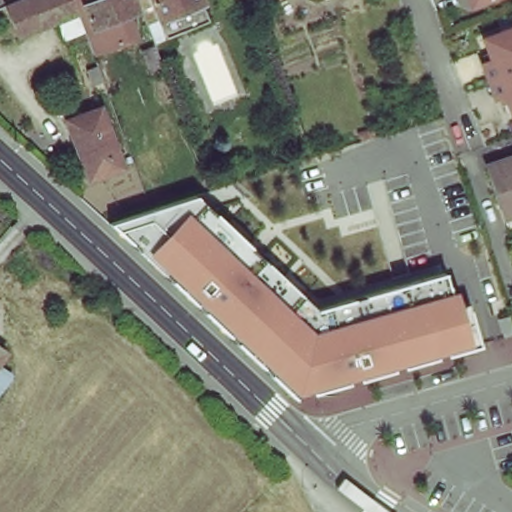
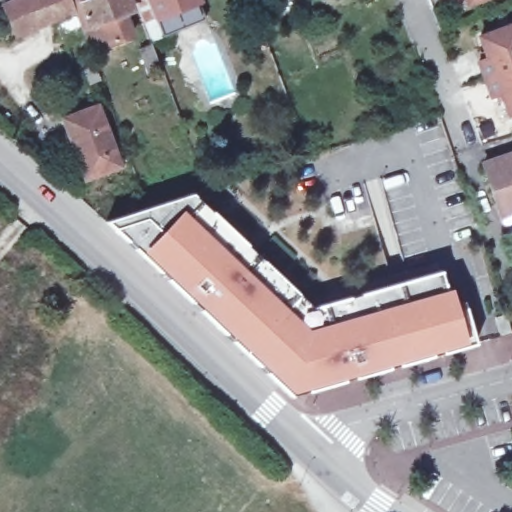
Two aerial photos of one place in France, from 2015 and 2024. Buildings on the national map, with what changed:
unchanged [(12,4),(22,0),(73,0),(77,12),(55,21),(23,34),(12,4)]
unchanged [(78,0),(92,0),(140,0),(141,2),(136,5),(137,10),(95,27),(89,29),(82,10),(78,0)]
unchanged [(167,36),(179,69),(167,73),(141,2),(140,0),(203,0),(210,20),(167,36)]
unchanged [(462,0),(474,0),(463,4),(462,0)]
unchanged [(77,12),(109,92),(87,97),(55,21),(77,12)]
unchanged [(475,58),(485,55),(476,32),(512,19),(512,62),(481,74),(475,58)]
unchanged [(512,107),(505,109),(497,87),(487,91),(481,74),(512,62),(512,107)]
unchanged [(97,107),(119,165),(87,177),(64,121),(97,107)]
unchanged [(420,120),(411,122),(398,127),(393,115),(416,107),(420,120)]
unchanged [(501,212),(486,169),(497,165),(512,160),(512,230),(508,231),(501,212)]
unchanged [(311,307),(442,272),(456,312),(466,307),(479,348),(297,398),(291,393),(143,253),(107,222),(191,194),(311,307)]
unchanged [(0,365),(0,349),(5,352),(0,365)]
unchanged [(12,377),(0,391),(0,367),(12,377)]

